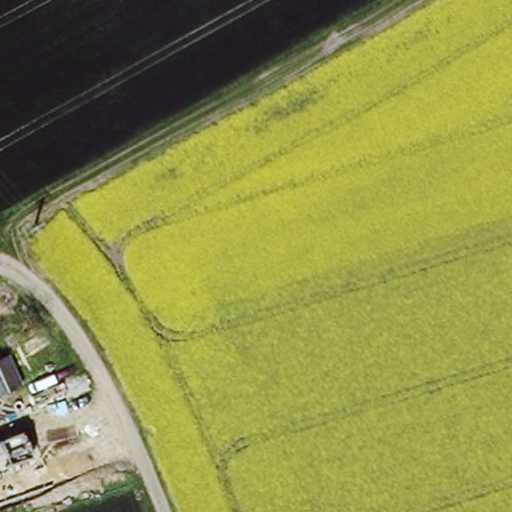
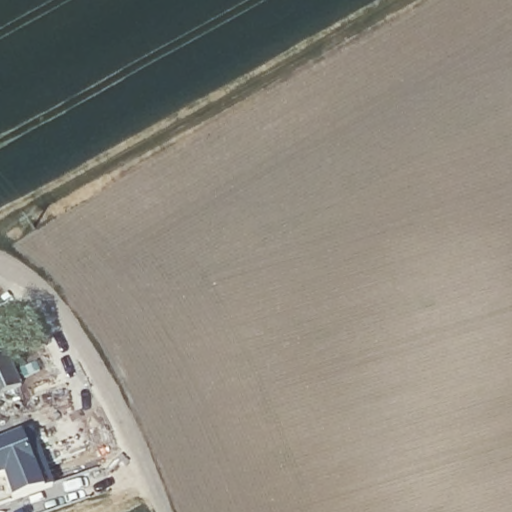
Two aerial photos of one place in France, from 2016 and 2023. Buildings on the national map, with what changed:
unchanged [(9,359),(21,391),(0,399),(0,362),(9,359)]
demolished [(11,466),(15,476),(0,482),(0,449),(2,448),(0,443),(35,429),(45,452),(11,466)]
new [(52,485),(45,487),(13,499),(5,475),(0,476),(0,442),(23,433),(32,431),(52,485)]

